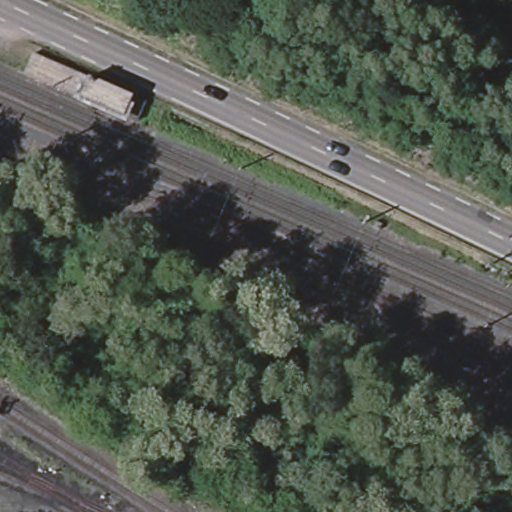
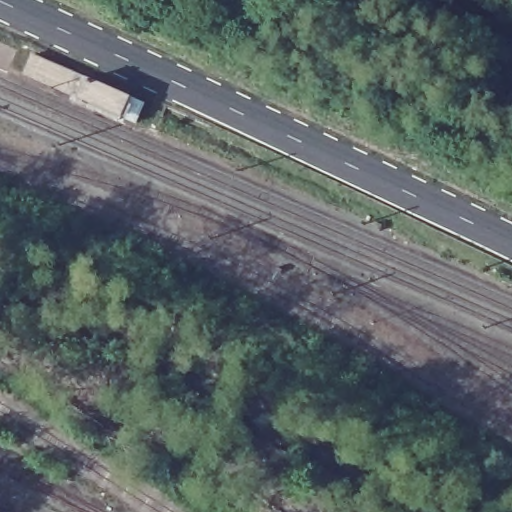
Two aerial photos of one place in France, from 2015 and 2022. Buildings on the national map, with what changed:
unchanged [(142,105),(133,123),(22,75),(30,56),(142,105)]

